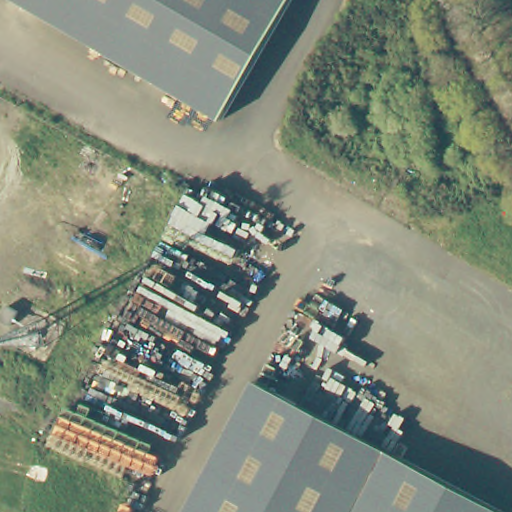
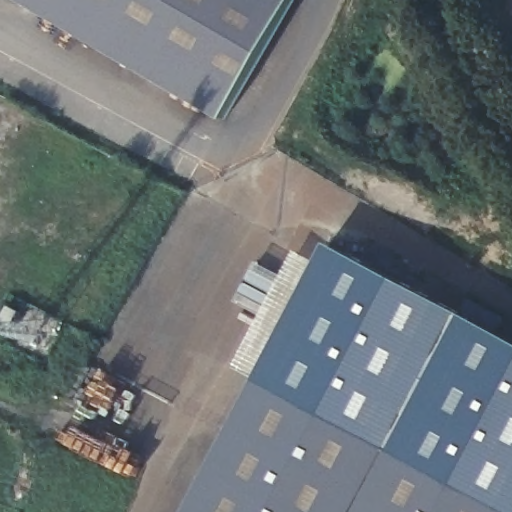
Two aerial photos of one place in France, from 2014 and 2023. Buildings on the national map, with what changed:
unchanged [(219,117),(23,0),(288,0),(219,117)]
new [(508,512),(263,377),(332,244),(512,339),(512,512),(508,512)]
new [(12,307),(22,313),(15,327),(5,321),(12,307)]
unchanged [(189,512),(263,377),(508,512),(189,512)]

